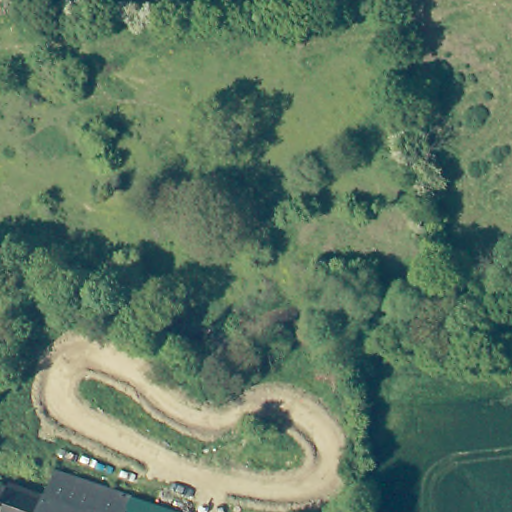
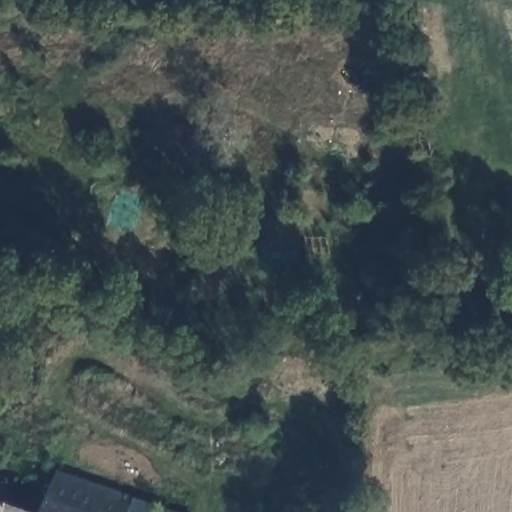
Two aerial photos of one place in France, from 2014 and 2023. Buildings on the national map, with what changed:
unchanged [(15,487),(17,483),(52,495),(60,470),(193,512),(0,512),(0,482),(15,487)]

